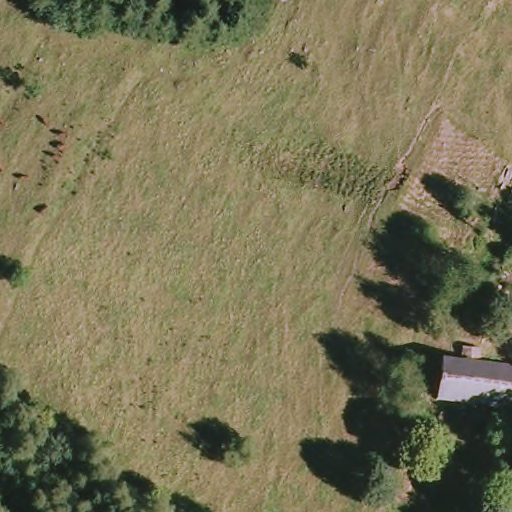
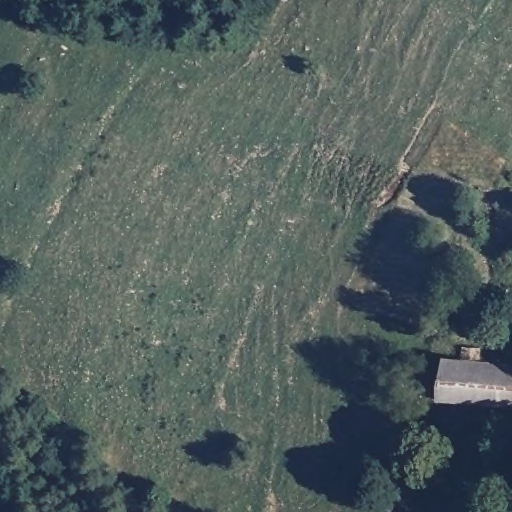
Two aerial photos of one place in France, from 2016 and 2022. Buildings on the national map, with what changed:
unchanged [(442,394),(429,394),(430,373),(444,374),(445,358),(467,361),(468,342),(487,348),(485,364),(512,368),(512,409),(441,404),(442,394)]

